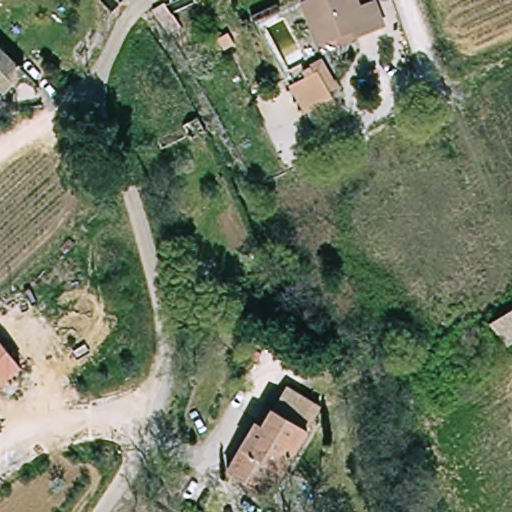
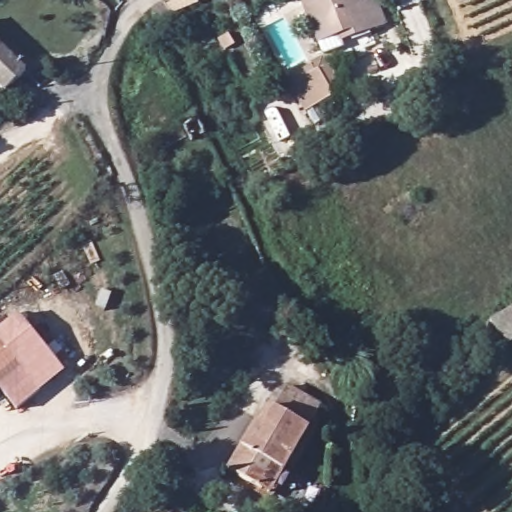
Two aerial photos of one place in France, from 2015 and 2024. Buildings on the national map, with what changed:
unchanged [(357,0),(359,7),(373,5),(379,34),(344,41),(343,34),(315,40),(304,0),(357,0)]
unchanged [(8,106),(0,97),(0,54),(29,90),(8,106)]
unchanged [(326,62),(344,94),(304,117),(286,85),(326,62)]
unchanged [(211,120),(191,129),(184,112),(202,104),(211,120)]
unchanged [(489,325),(512,309),(512,344),(504,350),(494,335),(489,325)]
new [(47,350),(63,371),(17,410),(0,389),(0,330),(18,315),(47,350)]
unchanged [(255,420),(263,426),(287,384),(325,408),(271,500),(223,470),(255,420)]

